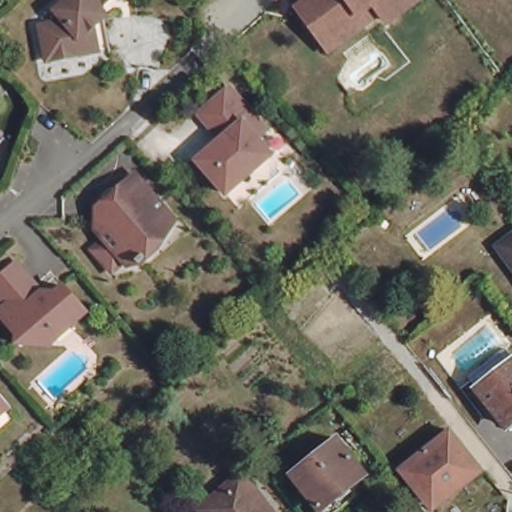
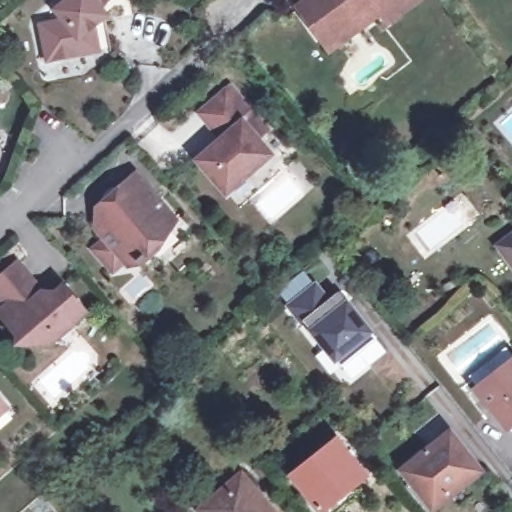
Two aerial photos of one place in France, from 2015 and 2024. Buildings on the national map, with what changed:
unchanged [(46,66),(39,32),(62,27),(62,25),(55,17),(74,0),(113,0),(97,15),(103,22),(110,54),(96,57),(46,66)]
unchanged [(300,11),(315,0),(416,0),(418,2),(387,24),(385,20),(381,15),(329,52),(310,25),(300,11)]
unchanged [(223,195),(195,162),(222,139),(200,113),(227,90),(263,134),(255,141),(268,157),(223,195)]
unchanged [(105,264),(90,247),(103,237),(100,234),(101,228),(94,227),(95,206),(134,172),(174,217),(145,242),(142,254),(144,256),(138,261),(136,258),(123,262),(122,259),(110,269),(105,264)]
unchanged [(512,257),(504,247),(512,241),(512,257)]
unchanged [(93,315),(79,328),(72,321),(58,333),(58,347),(23,347),(23,337),(4,313),(11,307),(0,294),(0,286),(24,265),(50,294),(63,295),(70,288),(93,315)]
new [(338,293),(345,302),(347,299),(374,333),(378,338),(340,367),(335,362),(310,331),(312,328),(305,322),(302,325),(287,307),(315,283),(330,300),(338,293)]
unchanged [(478,390),(470,380),(507,351),(512,357),(512,433),(478,390)]
unchanged [(0,411),(0,398),(7,405),(0,411)]
unchanged [(425,502),(400,472),(450,433),(481,473),(442,505),(435,507),(425,502)]
unchanged [(335,512),(321,512),(320,511),(292,476),(337,440),(365,476),(350,487),(357,495),(335,512)]
unchanged [(241,476),(246,482),(270,512),(200,512),(198,510),(241,476)]

